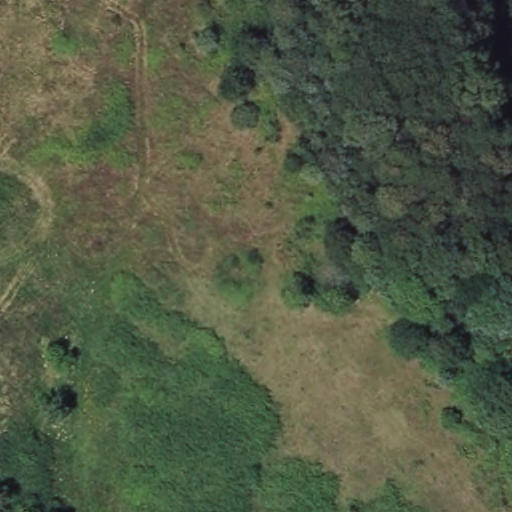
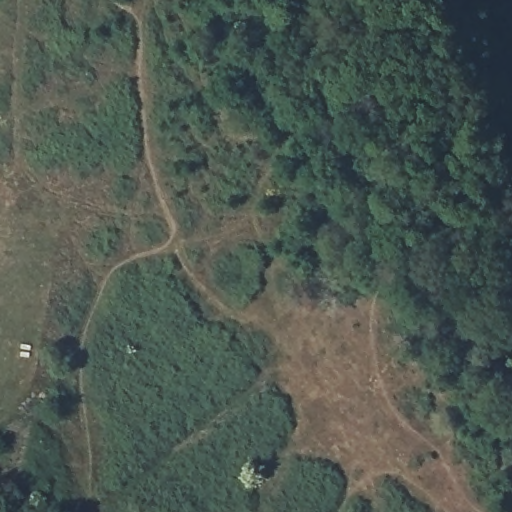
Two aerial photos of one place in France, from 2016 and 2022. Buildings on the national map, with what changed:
[]

